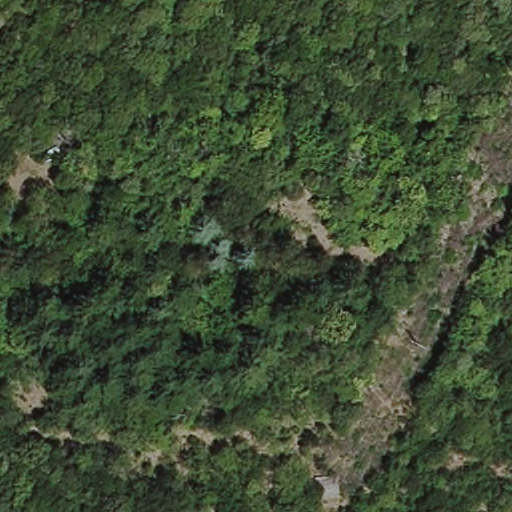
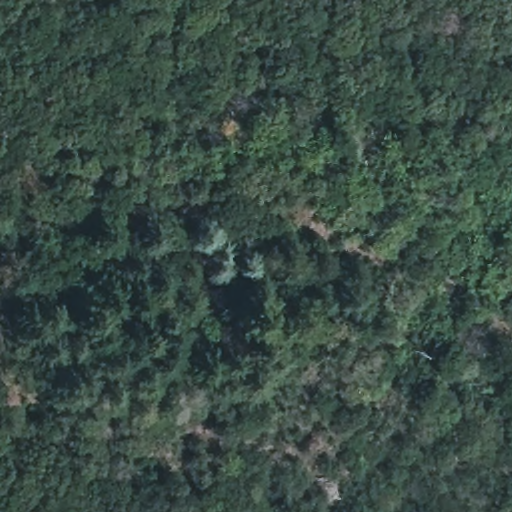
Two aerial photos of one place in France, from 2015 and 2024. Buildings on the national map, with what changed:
unchanged [(332,473),(333,498),(314,499),(313,477),(332,473)]

